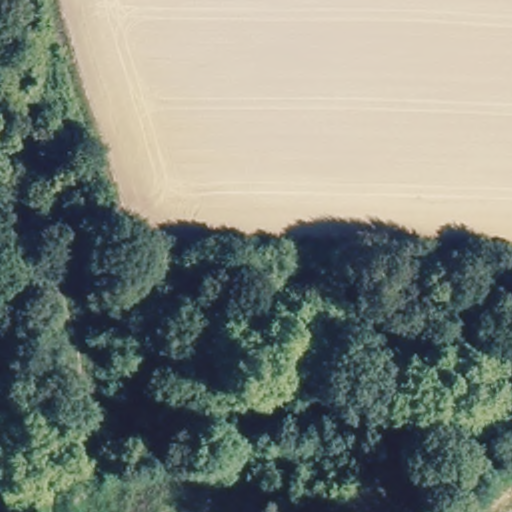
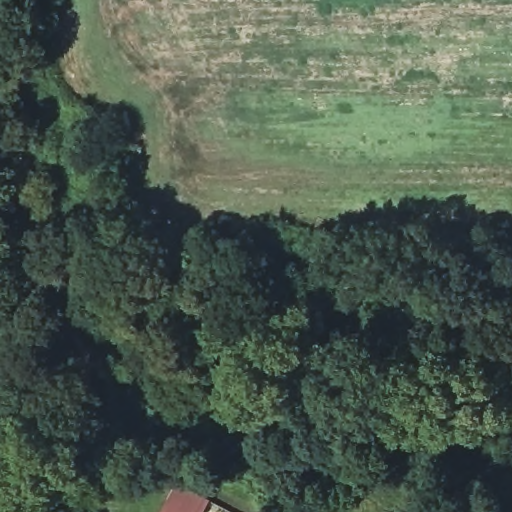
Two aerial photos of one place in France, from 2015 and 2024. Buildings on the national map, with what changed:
new [(177,485),(210,503),(205,512),(162,512),(177,485)]

